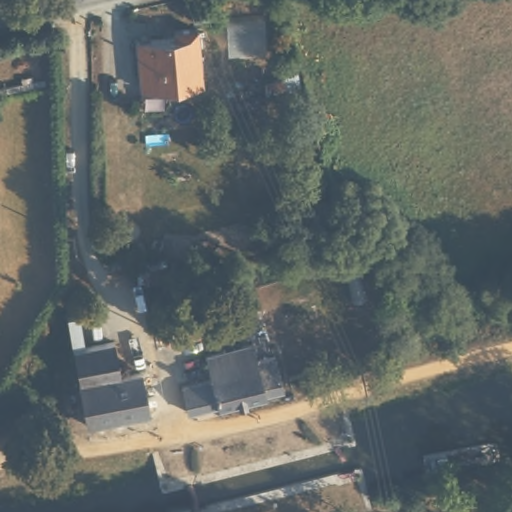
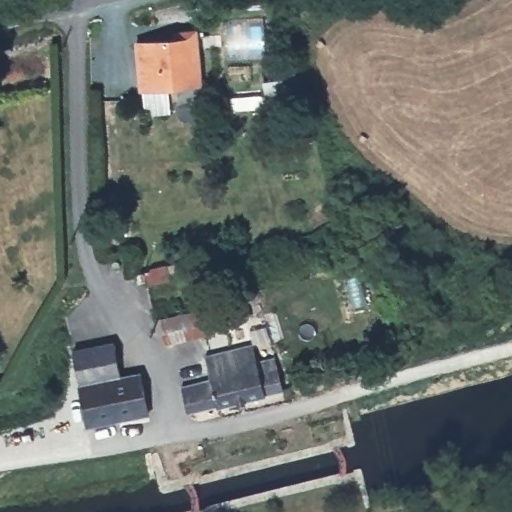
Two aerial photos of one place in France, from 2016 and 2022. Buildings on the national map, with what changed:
unchanged [(203,84),(145,94),(139,47),(175,41),(176,34),(195,30),(203,84)]
unchanged [(137,275),(146,273),(150,284),(140,286),(137,275)]
unchanged [(151,415),(86,425),(80,382),(72,346),(117,342),(121,375),(141,373),(151,415)]
unchanged [(202,353),(243,343),(249,362),(274,357),(282,387),(189,408),(181,376),(207,371),(202,353)]

